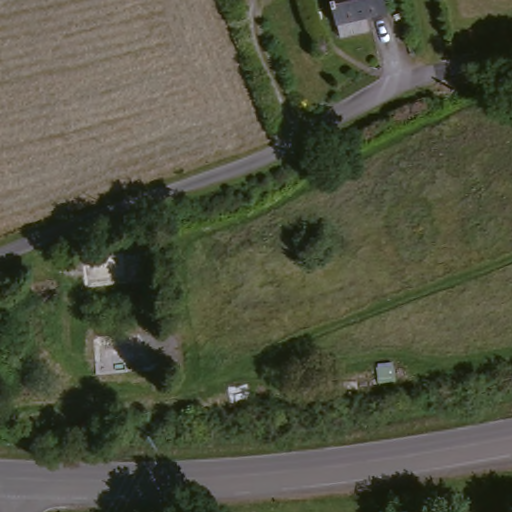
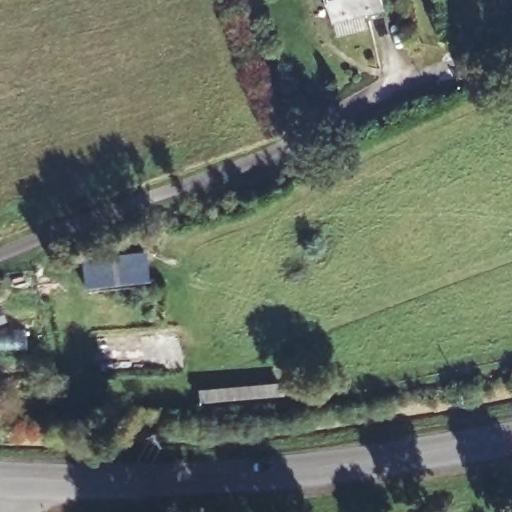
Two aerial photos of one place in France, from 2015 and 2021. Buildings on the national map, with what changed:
unchanged [(343,40),(338,22),(332,0),(386,0),(388,8),(366,14),(371,33),(343,40)]
new [(82,258),(146,251),(149,279),(85,286),(82,258)]

